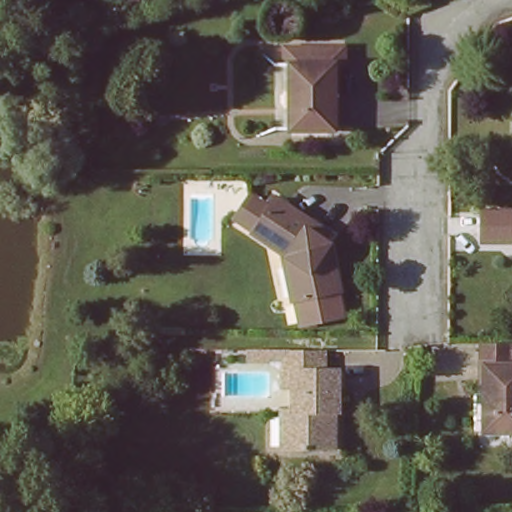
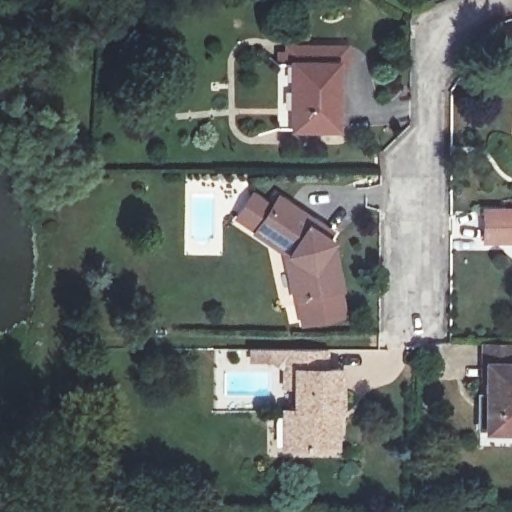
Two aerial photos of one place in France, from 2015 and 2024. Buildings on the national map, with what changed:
unchanged [(334,61),(331,126),(284,124),(286,60),(334,61)]
unchanged [(236,213),(250,189),(271,201),(274,197),(307,215),(306,226),(324,238),(332,244),(344,290),(297,298),(291,268),(291,264),(294,258),(255,228),(257,225),(236,213)]
unchanged [(512,210),(512,240),(485,240),(485,209),(512,210)]
unchanged [(269,346),(270,358),(244,358),(244,346),(269,346)]
unchanged [(327,448),(278,448),(278,410),(292,410),(292,384),(279,384),(279,346),(304,346),(324,346),(325,368),(338,368),(338,409),(339,448),(327,448)]
unchanged [(512,429),(480,429),(481,359),(512,359),(512,429)]

